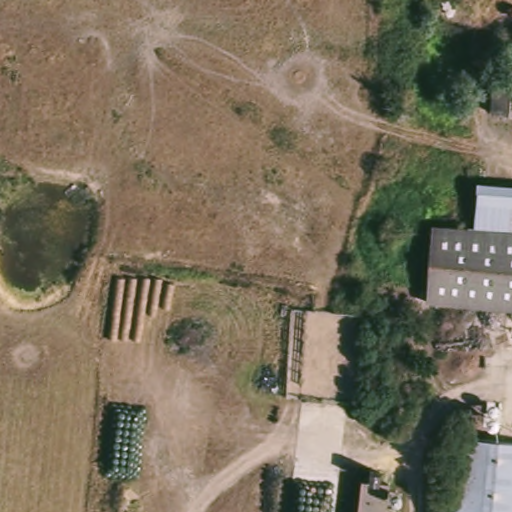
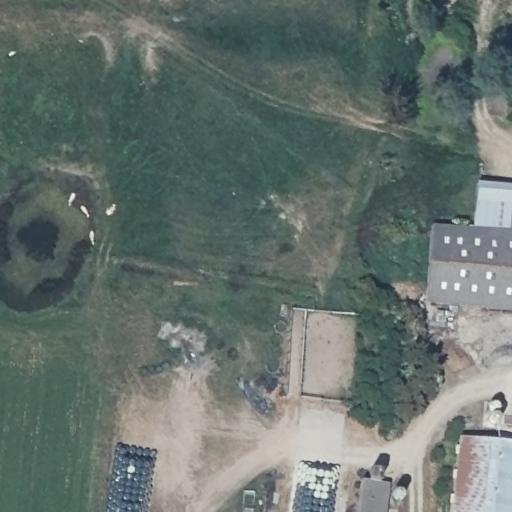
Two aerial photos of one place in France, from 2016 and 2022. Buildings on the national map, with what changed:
unchanged [(512,63),(490,63),(491,37),(512,38),(512,63)]
unchanged [(512,116),(492,115),(493,81),(512,82),(512,116)]
unchanged [(512,227),(458,221),(461,196),(512,202),(512,227)]
unchanged [(428,218),(458,221),(512,227),(512,311),(424,302),(428,218)]
unchanged [(512,512),(444,512),(453,439),(512,448),(512,512)]
unchanged [(359,470),(372,471),(372,482),(381,482),(379,512),(351,512),(354,479),(359,480),(359,470)]

